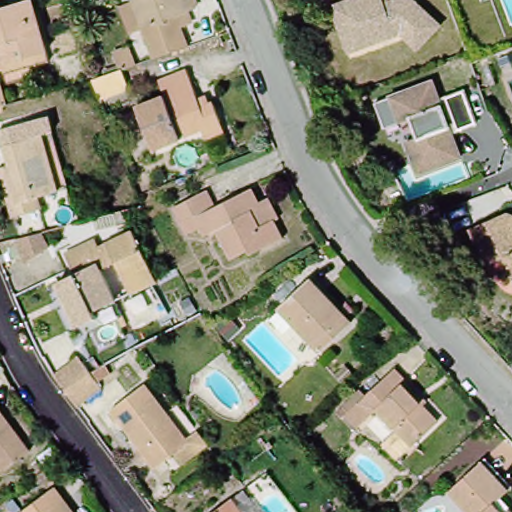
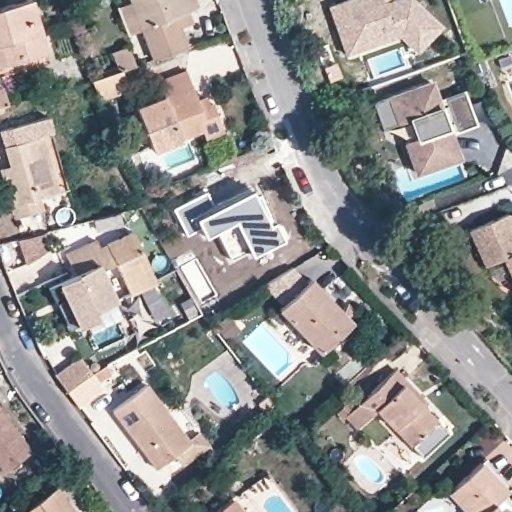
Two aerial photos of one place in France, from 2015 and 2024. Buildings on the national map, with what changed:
unchanged [(0,74),(0,1),(2,0),(31,0),(48,47),(52,58),(0,74)]
unchanged [(112,1),(116,0),(190,0),(192,3),(184,6),(187,19),(180,21),(184,42),(145,55),(137,26),(123,30),(112,1)]
unchanged [(353,55),(334,8),(354,0),(393,0),(393,1),(397,0),(421,0),(448,27),(421,51),(405,34),(376,45),(353,55)]
unchanged [(105,49),(123,43),(128,60),(135,80),(105,89),(98,70),(111,65),(105,49)]
unchanged [(155,146),(155,145),(139,105),(167,94),(167,92),(161,78),(185,69),(191,85),(207,79),(213,93),(222,119),(226,128),(207,135),(204,126),(183,134),(183,136),(155,146)]
unchanged [(377,101),(434,78),(465,152),(424,169),(411,137),(425,132),(416,114),(387,126),(377,101)]
unchanged [(468,85),(481,117),(464,124),(452,92),(468,85)]
unchanged [(6,87),(13,104),(0,108),(0,89),(6,87)]
unchanged [(139,103),(167,92),(139,105),(139,103)]
unchanged [(18,216),(6,167),(17,164),(11,149),(49,138),(66,197),(50,201),(52,207),(18,216)]
unchanged [(252,261),(246,253),(231,261),(218,239),(208,242),(200,230),(186,235),(173,209),(204,194),(212,207),(257,184),(270,203),(279,218),(274,221),(286,240),(252,261)]
unchanged [(496,271),(478,235),(512,217),(512,262),(496,271)]
unchanged [(154,277),(126,290),(112,259),(95,267),(115,311),(101,317),(93,301),(75,309),(56,269),(74,261),(65,240),(87,229),(92,242),(130,224),(154,277)]
unchanged [(51,243),(27,259),(21,234),(47,227),(51,243)]
unchanged [(283,316),(313,286),(342,316),(349,309),(356,315),(349,322),(354,328),(324,358),(283,316)]
unchanged [(222,322),(218,317),(228,309),(240,325),(230,333),(229,333),(222,322)]
unchanged [(84,400),(71,385),(60,370),(86,350),(102,368),(111,378),(84,400)]
unchanged [(410,432),(385,405),(367,420),(354,408),(358,403),(353,398),(361,390),(374,378),(382,384),(399,369),(411,383),(427,401),(422,408),(437,426),(420,439),(402,454),(394,444),(410,432)]
unchanged [(211,442),(186,462),(178,450),(155,466),(109,406),(146,378),(192,439),(202,432),(211,442)]
unchanged [(6,466),(0,458),(0,403),(32,447),(6,466)]
unchanged [(481,471),(491,463),(512,486),(512,493),(505,499),(494,509),(496,512),(465,512),(453,499),(481,471)]
unchanged [(83,512),(29,512),(67,486),(83,512)]
unchanged [(256,512),(221,512),(244,495),(256,512)]

